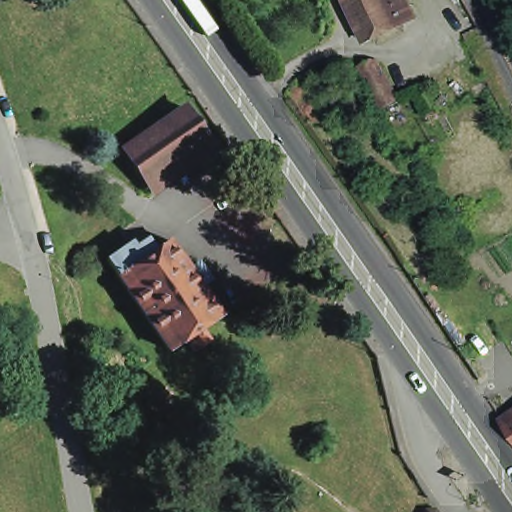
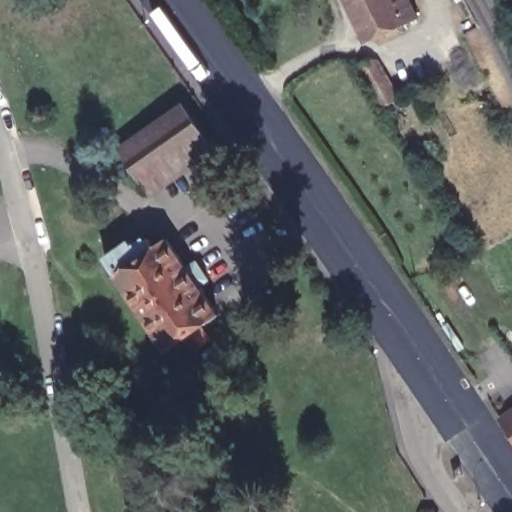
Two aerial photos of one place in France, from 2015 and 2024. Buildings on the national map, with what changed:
unchanged [(369,42),(349,0),(411,0),(419,17),(369,42)]
unchanged [(378,97),(372,86),(362,67),(374,60),(384,79),(389,77),(394,88),(401,99),(385,108),(378,97)]
unchanged [(122,157),(183,116),(207,151),(145,192),(122,157)]
unchanged [(162,351),(111,274),(104,278),(98,271),(105,267),(100,258),(125,242),(127,247),(140,239),(147,249),(162,239),(183,270),(192,263),(202,280),(194,285),(214,316),(162,351)]
unchanged [(502,416),(512,408),(512,432),(502,416)]

